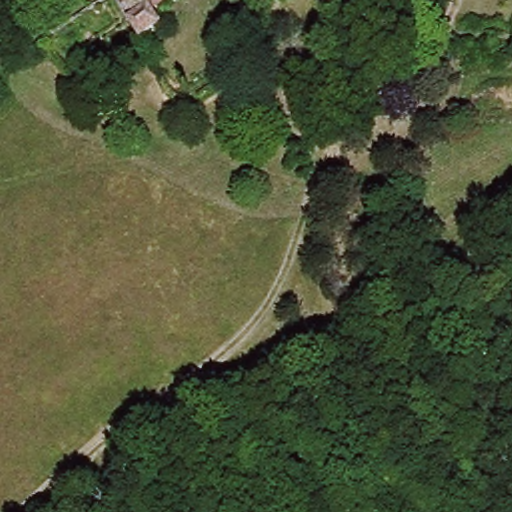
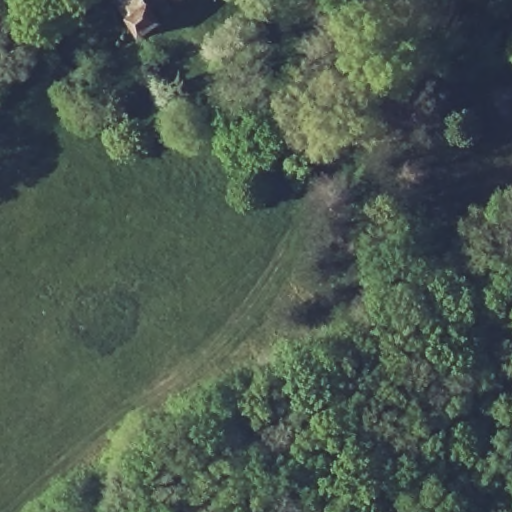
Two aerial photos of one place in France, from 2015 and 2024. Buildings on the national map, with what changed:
unchanged [(153,12),(160,28),(138,40),(114,0),(175,0),(153,12)]

